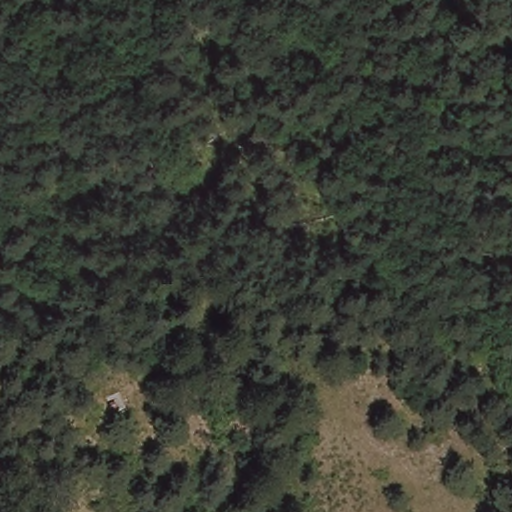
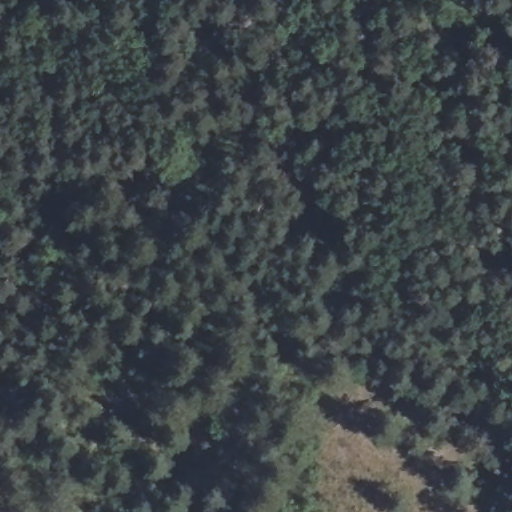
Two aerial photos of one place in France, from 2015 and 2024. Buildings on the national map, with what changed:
[]

